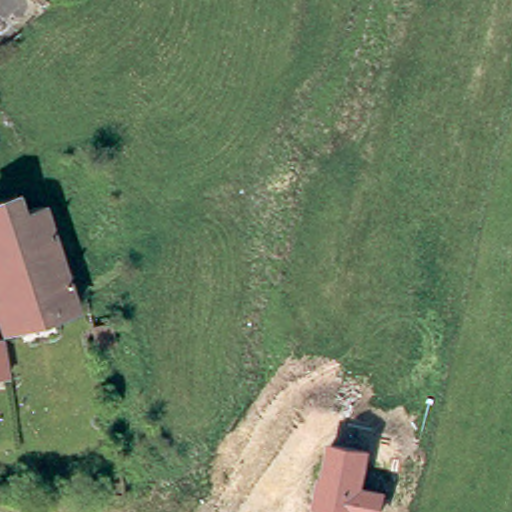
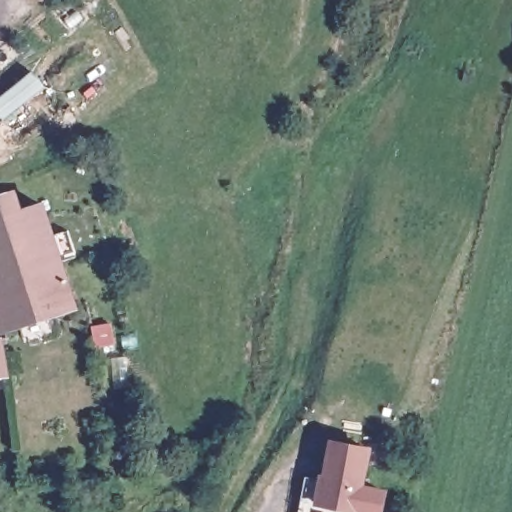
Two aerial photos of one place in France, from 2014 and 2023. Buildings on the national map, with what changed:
unchanged [(18,47),(0,60),(0,50),(12,41),(18,47)]
unchanged [(0,196),(10,193),(17,214),(38,206),(71,310),(2,331),(0,327),(0,196)]
unchanged [(110,338),(112,357),(93,361),(91,342),(110,338)]
unchanged [(0,361),(2,375),(0,376),(0,361)]
unchanged [(329,440),(372,447),(367,485),(388,489),(384,512),(348,512),(315,505),(319,474),(323,475),(329,440)]

